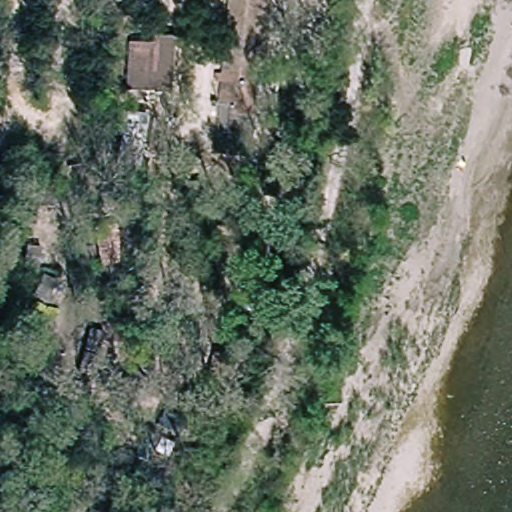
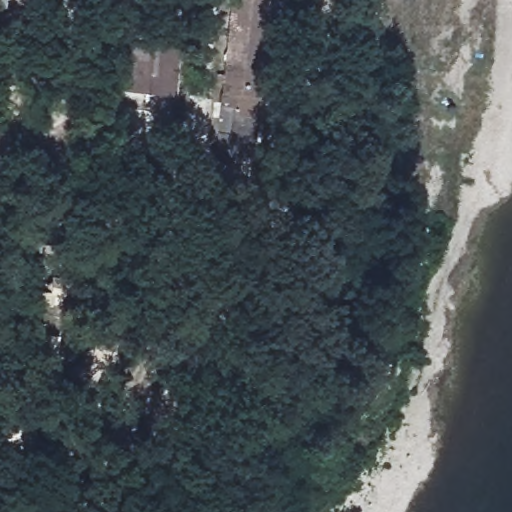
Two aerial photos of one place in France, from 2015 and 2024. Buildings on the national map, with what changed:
unchanged [(257,117),(235,117),(236,157),(217,159),(216,99),(220,99),(231,0),(274,0),(257,117)]
unchanged [(128,42),(153,41),(153,30),(179,30),(177,89),(125,89),(128,42)]

